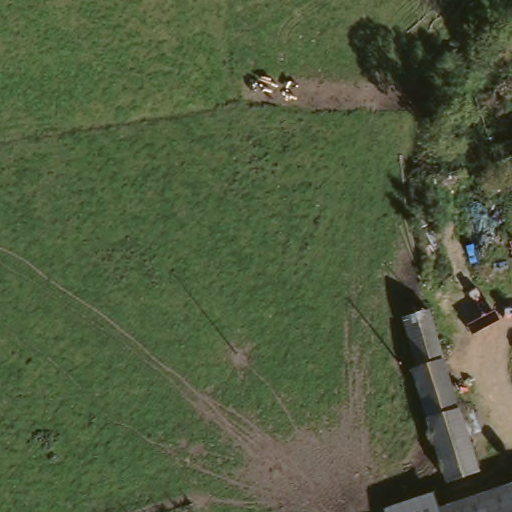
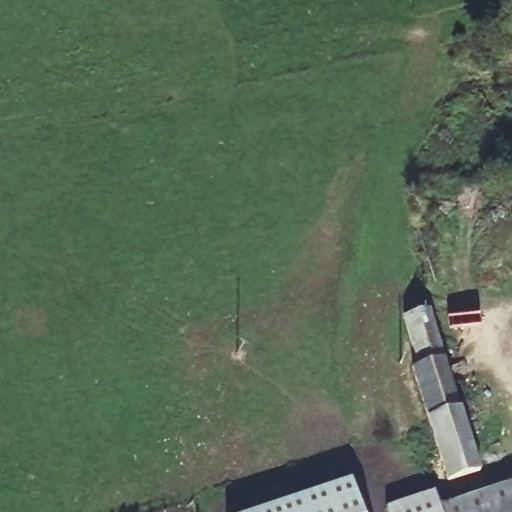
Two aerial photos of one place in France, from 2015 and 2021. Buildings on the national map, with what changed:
unchanged [(475,467),(443,477),(408,363),(414,361),(399,312),(424,305),(475,467)]
new [(361,512),(256,512),(350,481),(361,512)]
unchanged [(434,494),(439,509),(512,484),(512,512),(387,512),(386,510),(434,494)]

